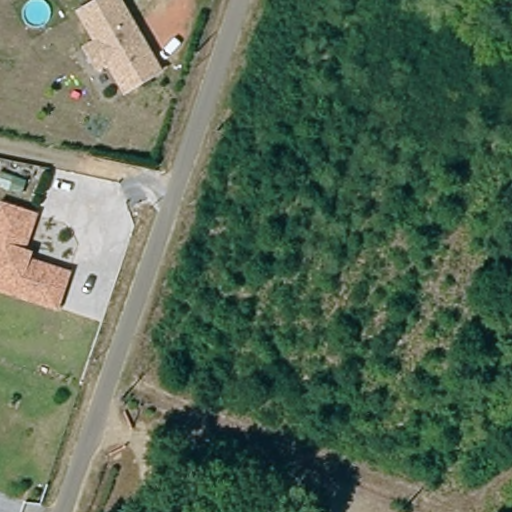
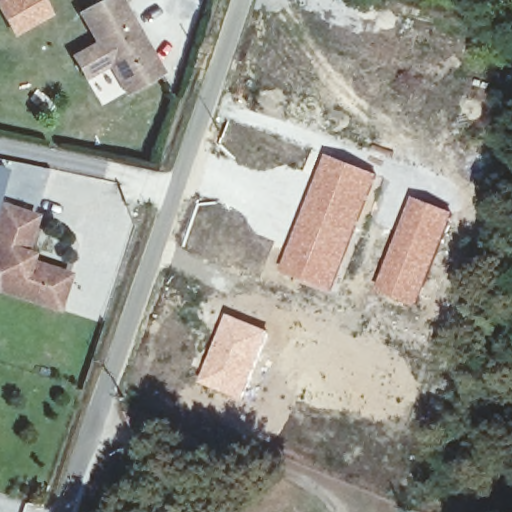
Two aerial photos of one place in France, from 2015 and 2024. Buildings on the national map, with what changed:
new [(13,37),(0,14),(0,0),(43,0),(51,13),(13,37)]
unchanged [(115,79),(107,65),(96,71),(85,50),(95,44),(78,14),(101,0),(117,0),(159,73),(130,90),(123,94),(115,79)]
new [(326,153),(378,174),(332,292),(281,271),(326,153)]
new [(0,204),(0,205),(0,165),(9,168),(0,204)]
new [(413,196),(454,213),(416,307),(376,292),(413,196)]
unchanged [(34,214),(24,250),(30,253),(28,260),(69,272),(59,306),(0,289),(0,205),(0,204),(34,214)]
new [(228,314),(269,332),(241,400),(200,383),(228,314)]

